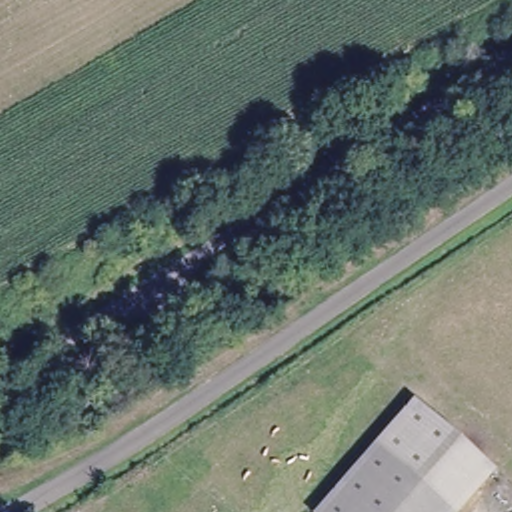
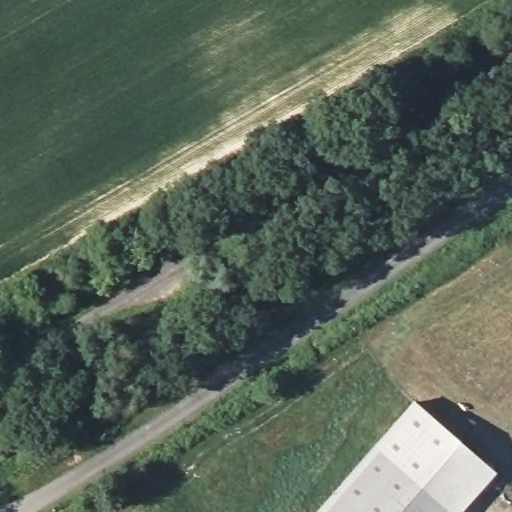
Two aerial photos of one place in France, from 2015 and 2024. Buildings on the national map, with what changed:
unchanged [(415,394),(487,461),(441,512),(322,512),(315,505),(415,394)]
unchanged [(500,471),(463,512),(441,512),(487,461),(500,471)]

